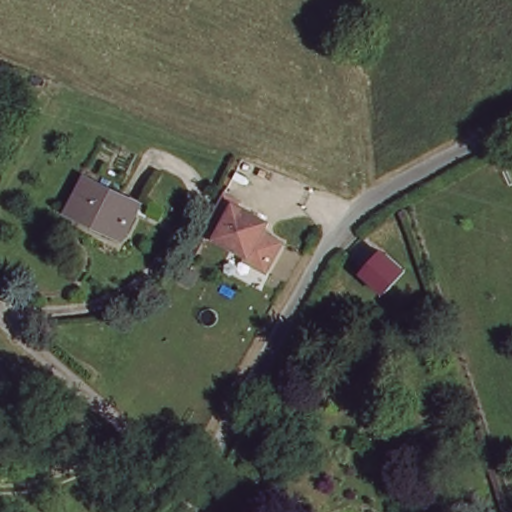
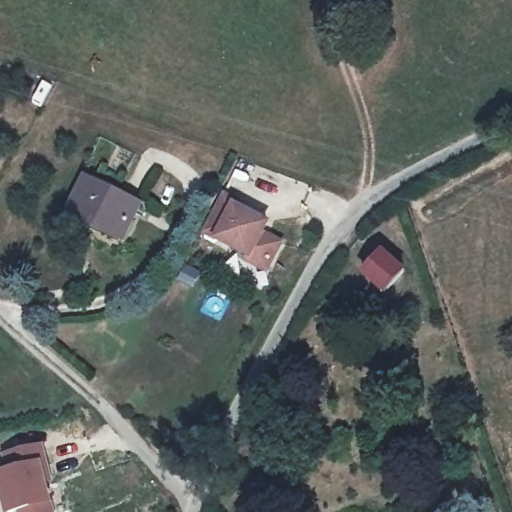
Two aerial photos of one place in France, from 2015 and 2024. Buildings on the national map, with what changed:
unchanged [(93,182),(135,217),(115,245),(73,211),(93,182)]
unchanged [(243,205),(277,222),(272,232),(290,242),(275,270),(256,260),(258,255),(212,231),(231,194),(245,201),(243,205)]
unchanged [(385,246),(405,263),(385,287),(365,269),(385,246)]
new [(0,472),(3,471),(0,455),(42,442),(52,482),(47,485),(52,505),(54,512),(4,512),(0,498),(0,472)]

